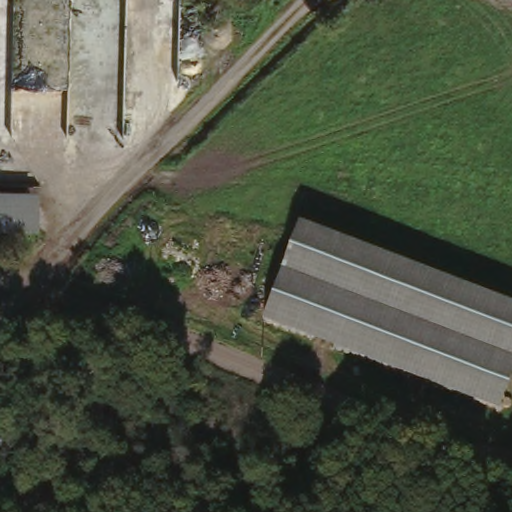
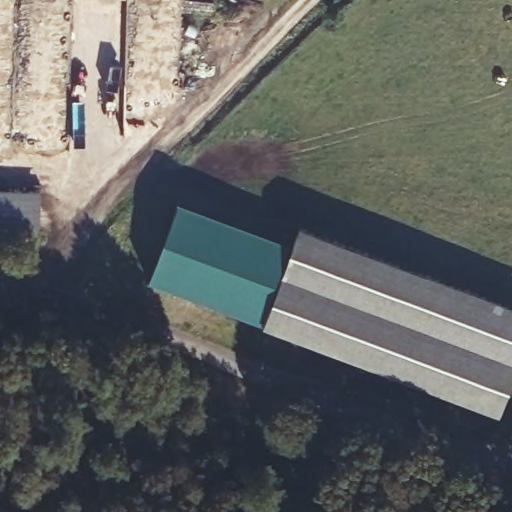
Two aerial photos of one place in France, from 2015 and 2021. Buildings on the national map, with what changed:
unchanged [(37,187),(35,225),(0,224),(0,186),(37,187)]
new [(147,277),(175,201),(290,243),(263,320),(147,277)]
unchanged [(512,380),(501,410),(263,320),(298,222),(512,301),(512,380)]

